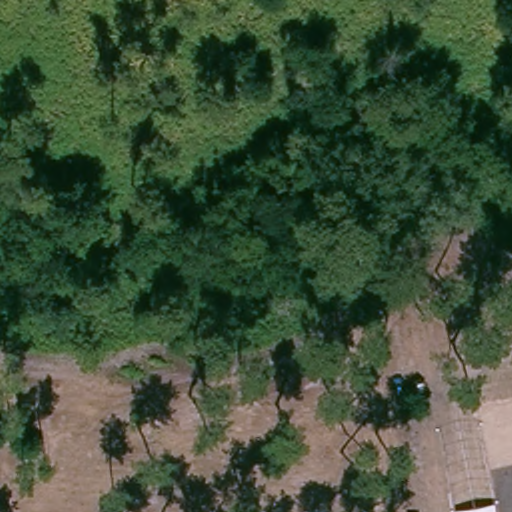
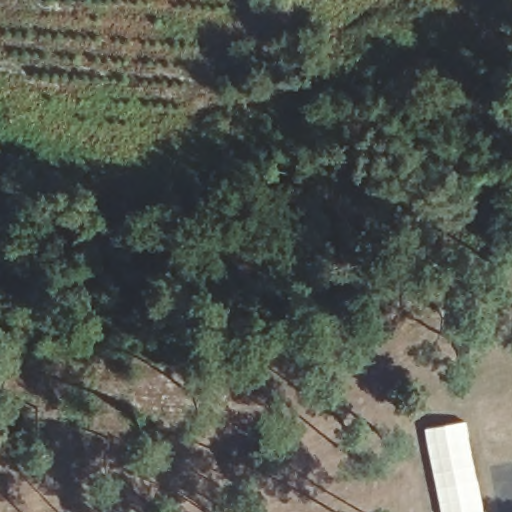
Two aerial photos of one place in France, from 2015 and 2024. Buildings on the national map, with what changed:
new [(483,512),(440,512),(423,427),(466,420),(483,512)]

